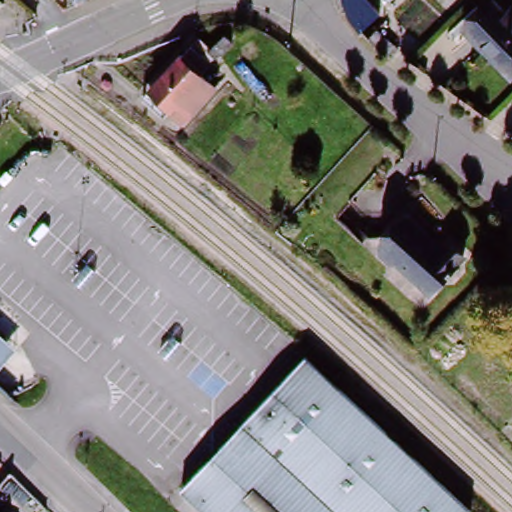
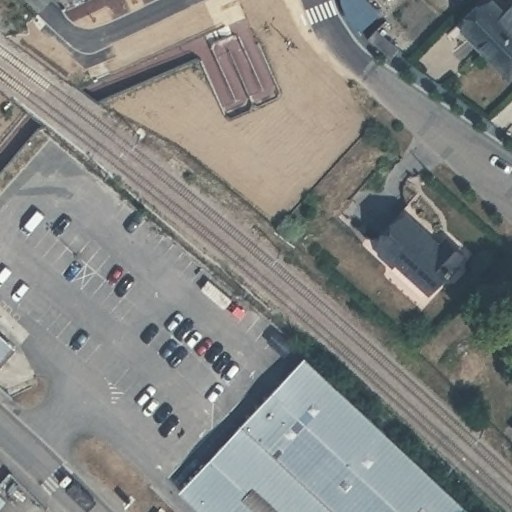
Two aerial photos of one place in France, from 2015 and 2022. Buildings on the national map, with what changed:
unchanged [(359,35),(347,19),(341,6),(340,0),(361,0),(377,19),(359,35)]
unchanged [(496,9),(508,21),(512,17),(512,83),(468,36),(496,9)]
unchanged [(367,44),(378,33),(405,56),(404,59),(408,64),(402,70),(377,54),(367,44)]
demolished [(175,110),(170,115),(156,101),(162,94),(155,88),(187,56),(194,63),(203,53),(214,62),(204,71),(222,89),(194,119),(189,124),(175,110)]
unchanged [(436,248),(443,242),(461,258),(441,279),(438,276),(424,290),(422,293),(393,266),(385,266),(375,257),(375,254),(375,249),(377,247),(405,219),(436,248)]
unchanged [(0,360),(0,343),(9,351),(0,360)]
unchanged [(177,496),(303,362),(463,512),(194,512),(177,496)]

